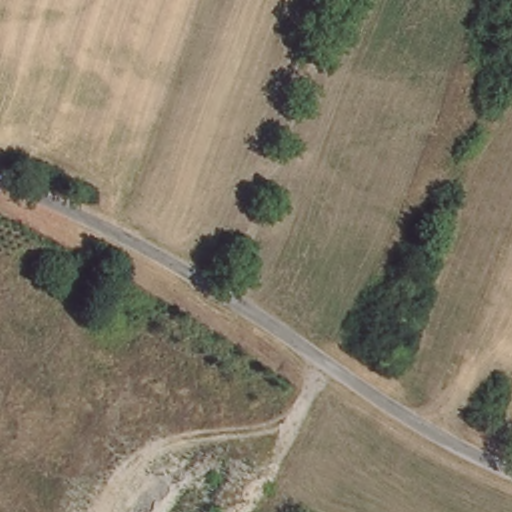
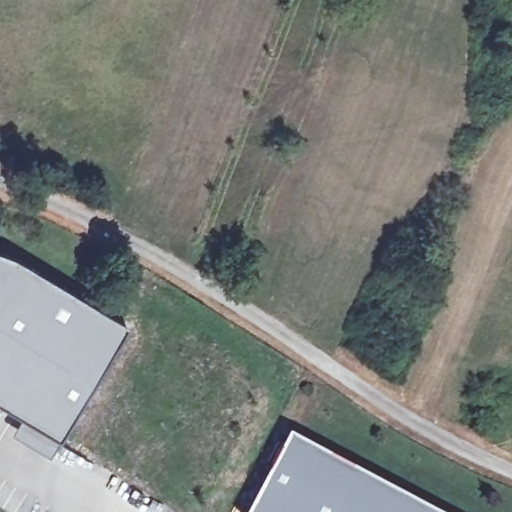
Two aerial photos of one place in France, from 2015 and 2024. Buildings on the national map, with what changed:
new [(7,257),(126,327),(58,441),(53,449),(18,428),(13,426),(18,418),(0,408),(0,254),(7,257)]
new [(18,428),(56,451),(48,466),(9,443),(18,428)]
new [(441,512),(263,512),(300,436),(441,512)]

